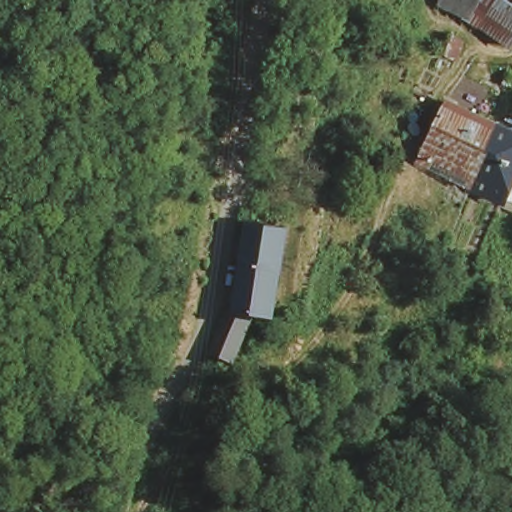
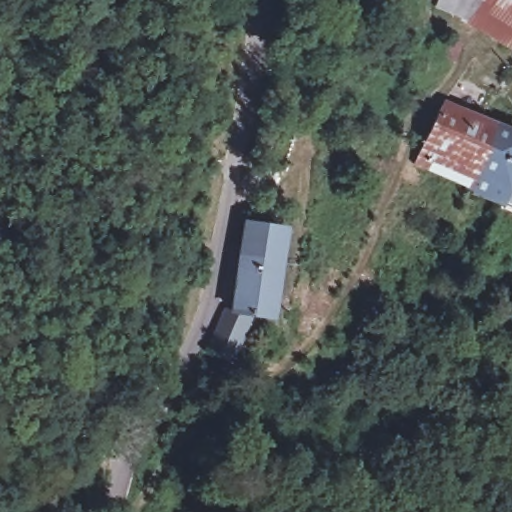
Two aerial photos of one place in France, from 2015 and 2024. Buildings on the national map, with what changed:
unchanged [(505,46),(427,12),(430,0),(512,0),(512,34),(505,46)]
unchanged [(512,138),(512,151),(491,201),(466,189),(468,180),(469,179),(461,175),(420,154),(427,137),(442,105),(465,116),(475,120),(483,124),(500,133),(512,138)]
unchanged [(272,307),(250,305),(233,344),(217,342),(223,304),(235,302),(249,217),(281,221),(277,268),(272,307)]

